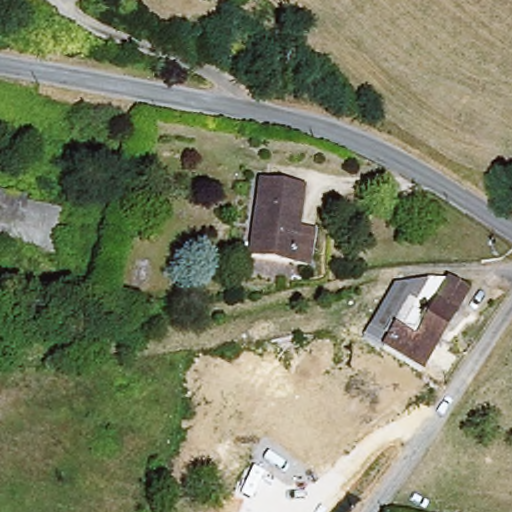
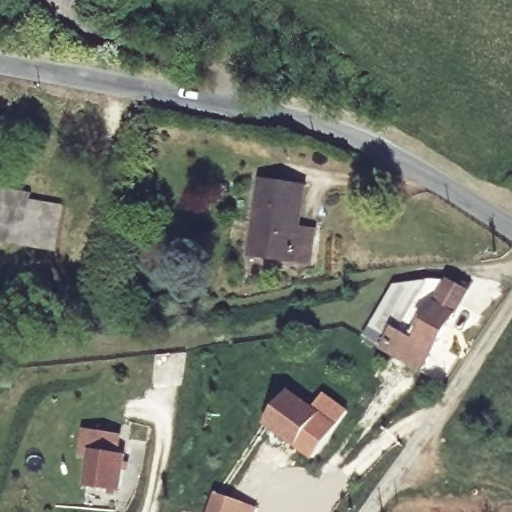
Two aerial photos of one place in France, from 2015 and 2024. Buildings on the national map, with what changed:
unchanged [(267,41),(260,71),(213,57),(220,27),(267,41)]
unchanged [(311,261),(250,252),(261,178),(305,185),(300,226),(315,227),(311,261)]
unchanged [(33,191),(34,197),(67,203),(58,249),(0,240),(0,192),(1,185),(33,191)]
unchanged [(402,281),(426,278),(453,277),(472,288),(426,368),(370,337),(402,281)]
demolished [(381,396),(390,382),(394,385),(405,366),(432,382),(411,416),(381,396)]
new [(289,387),(312,405),(321,411),(293,448),(261,425),(289,387)]
new [(321,411),(312,405),(323,391),(348,411),(310,461),(293,448),(321,411)]
new [(117,454),(125,456),(120,492),(82,487),(88,457),(78,456),(83,425),(121,430),(117,454)]
unchanged [(241,512),(207,512),(215,491),(245,502),(241,512)]

